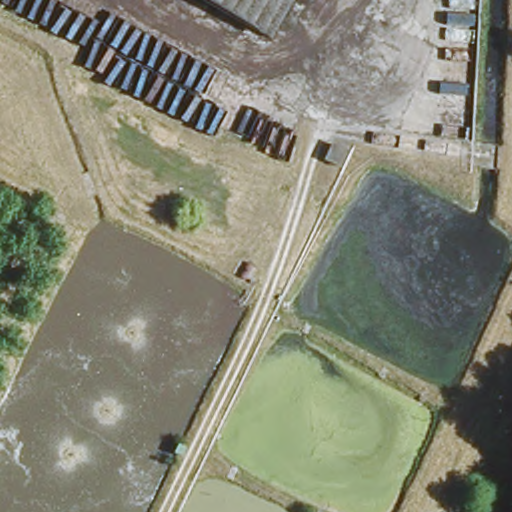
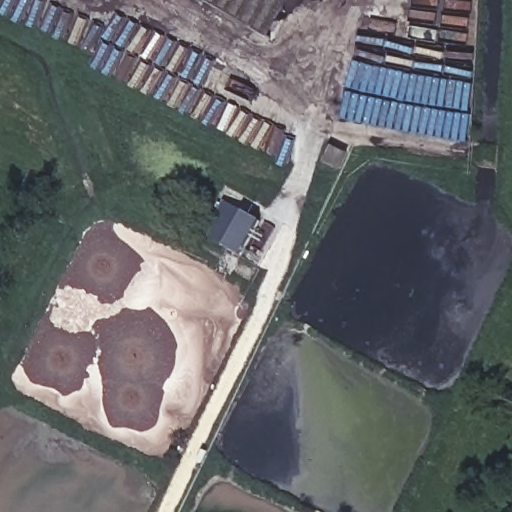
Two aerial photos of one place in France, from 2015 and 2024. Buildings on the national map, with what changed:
unchanged [(250,46),(183,0),(281,0),(250,46)]
new [(222,216),(218,215),(226,202),(261,222),(242,256),(210,238),(222,216)]

